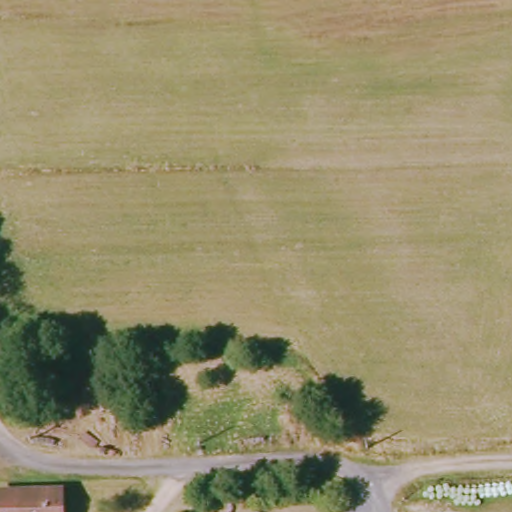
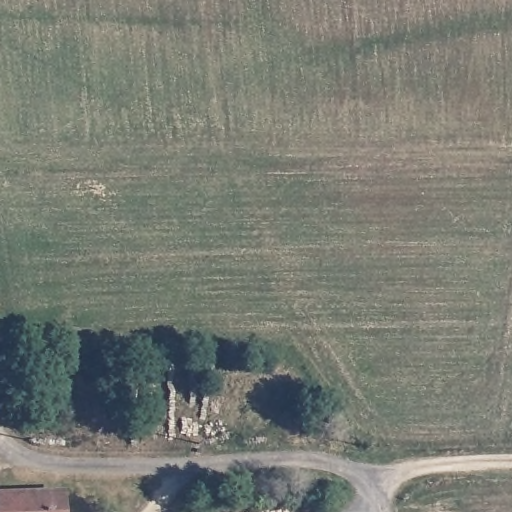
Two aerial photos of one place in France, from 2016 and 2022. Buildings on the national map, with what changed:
unchanged [(63,512),(0,512),(0,494),(62,492),(63,512)]

